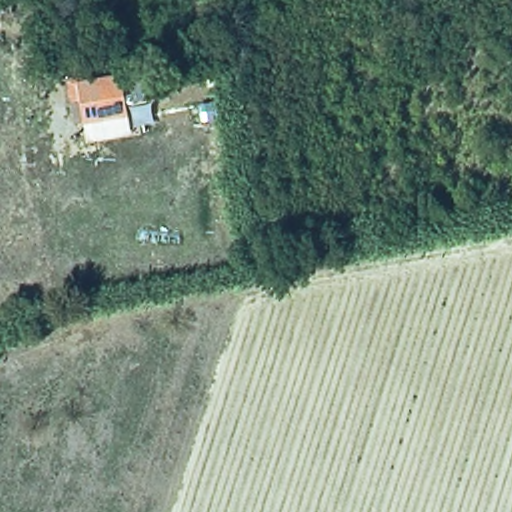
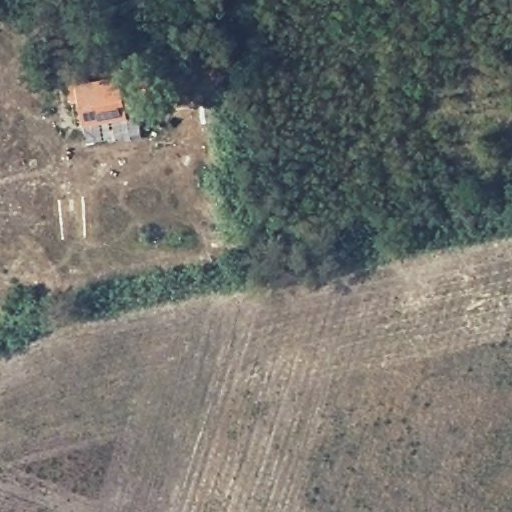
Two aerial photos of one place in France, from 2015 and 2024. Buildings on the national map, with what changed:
unchanged [(0,0),(3,0),(5,18),(0,18),(0,0)]
unchanged [(118,74),(127,116),(84,124),(74,81),(118,74)]

